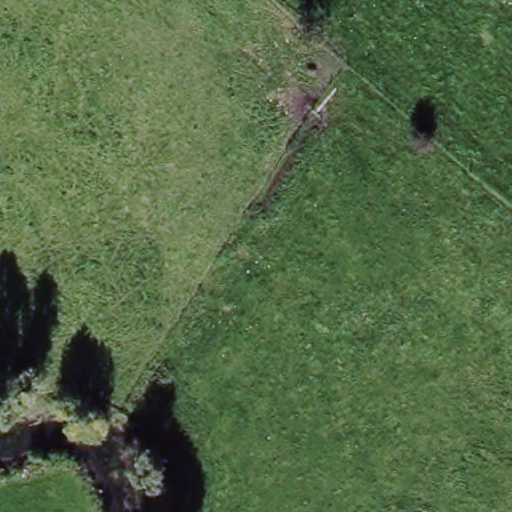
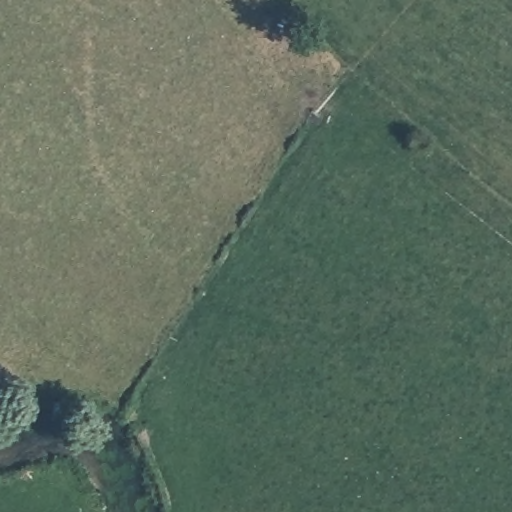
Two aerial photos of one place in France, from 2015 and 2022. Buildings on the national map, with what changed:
unchanged [(334,77),(349,88),(339,104),(323,93),(334,77)]

